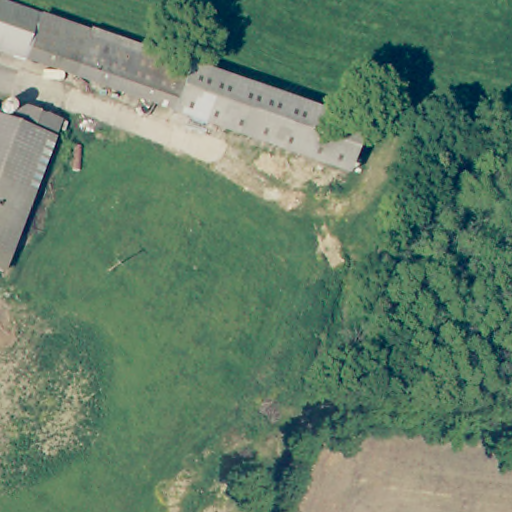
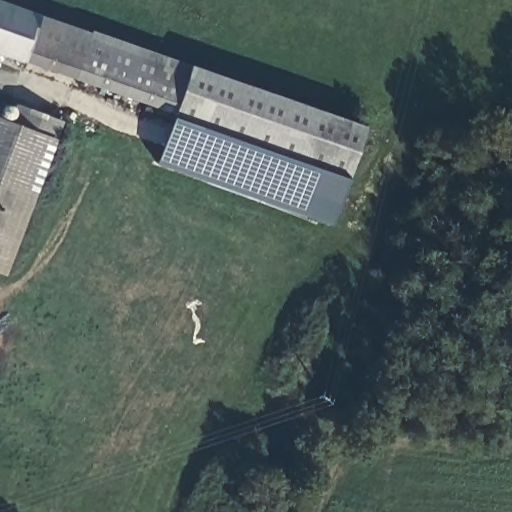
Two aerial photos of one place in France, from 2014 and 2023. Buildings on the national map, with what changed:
unchanged [(14,0),(0,43),(0,0),(14,0)]
unchanged [(92,78),(0,47),(0,43),(14,0),(16,0),(196,63),(179,108),(92,78)]
unchanged [(196,63),(368,123),(352,169),(179,108),(196,63)]
unchanged [(11,266),(0,262),(0,112),(12,116),(18,99),(64,115),(11,266)]
new [(330,225),(156,159),(179,108),(352,169),(330,225)]

